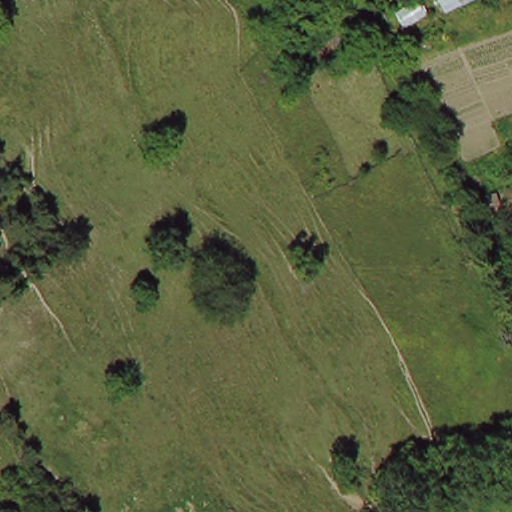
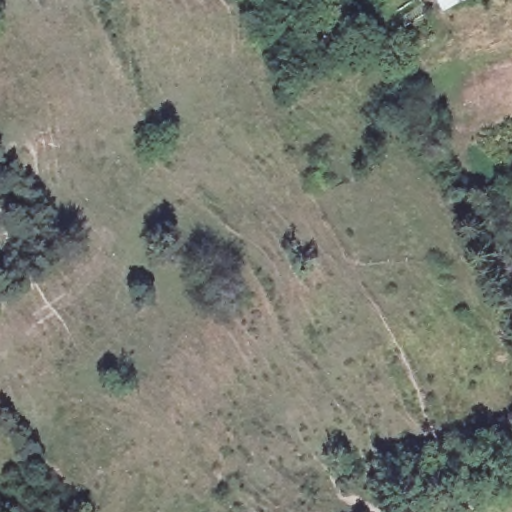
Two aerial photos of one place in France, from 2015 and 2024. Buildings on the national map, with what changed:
[]

